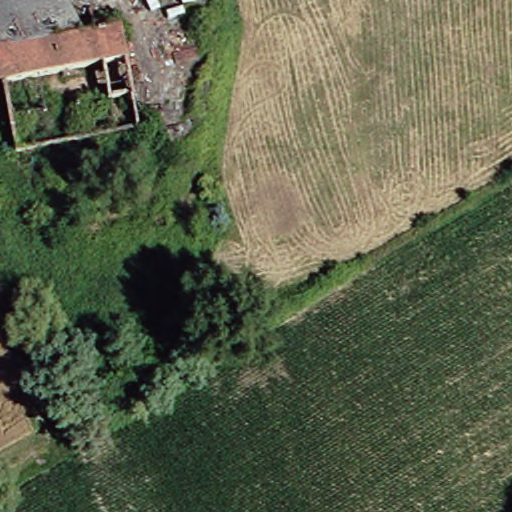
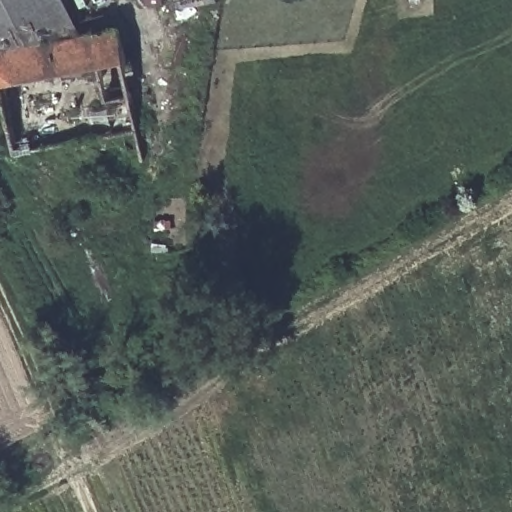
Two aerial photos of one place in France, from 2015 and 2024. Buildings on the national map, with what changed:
unchanged [(110,23),(124,95),(98,98),(91,63),(16,76),(18,114),(0,115),(0,0),(57,0),(72,29),(110,23)]

